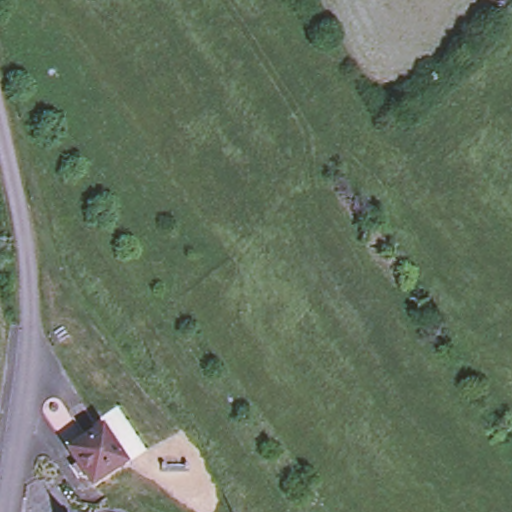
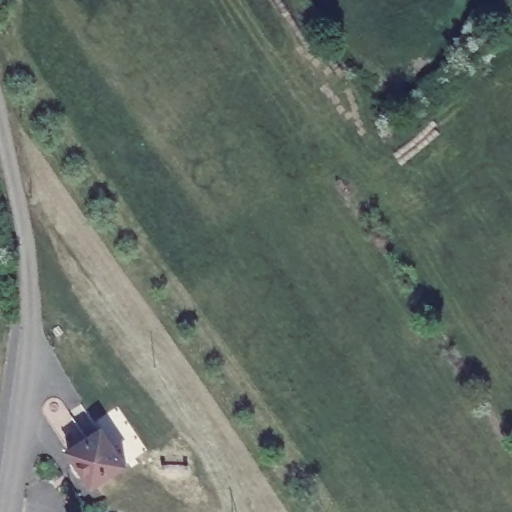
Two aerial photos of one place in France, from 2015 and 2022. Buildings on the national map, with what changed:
unchanged [(101,427),(126,464),(92,487),(67,450),(101,427)]

